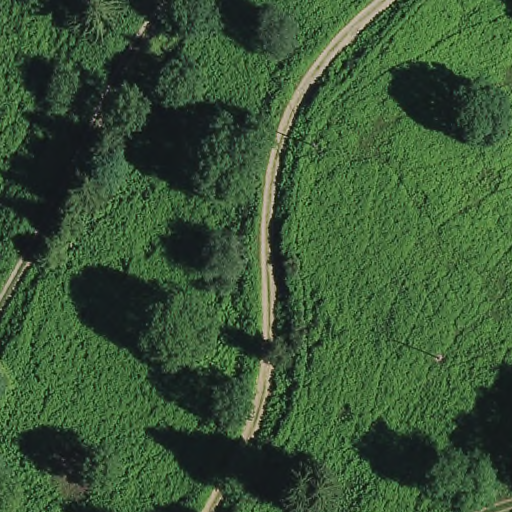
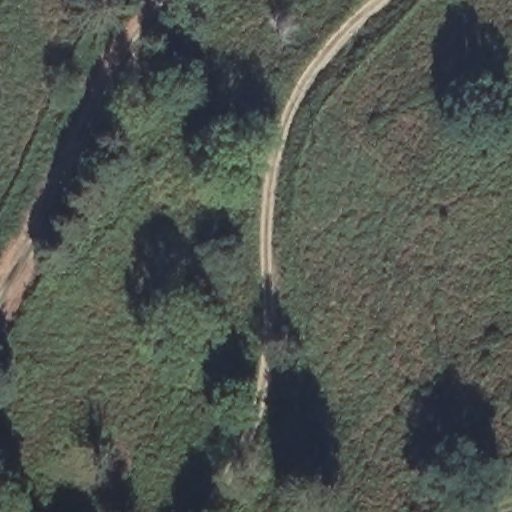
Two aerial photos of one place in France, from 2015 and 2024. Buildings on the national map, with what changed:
[]

